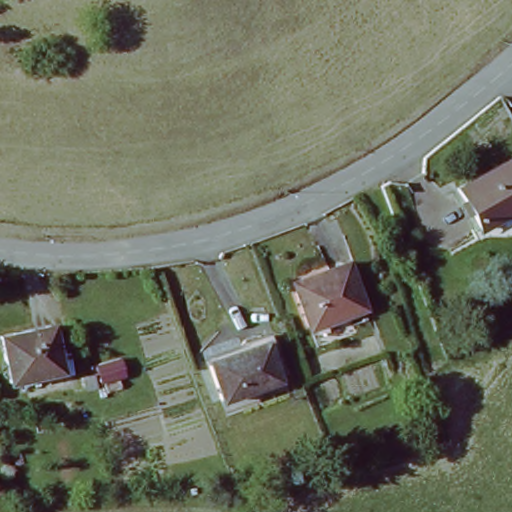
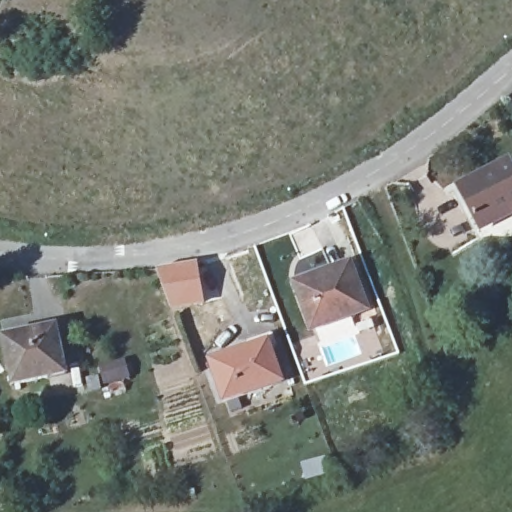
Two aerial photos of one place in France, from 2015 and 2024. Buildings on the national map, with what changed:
unchanged [(465,192),(512,169),(512,218),(486,231),(478,235),(456,196),(465,192)]
new [(197,261),(204,304),(171,312),(156,269),(197,261)]
unchanged [(321,274),(350,264),(367,311),(311,330),(298,287),(322,279),(321,274)]
unchanged [(68,370),(17,386),(3,340),(54,324),(68,370)]
unchanged [(278,384),(220,404),(207,365),(265,345),(278,384)]

